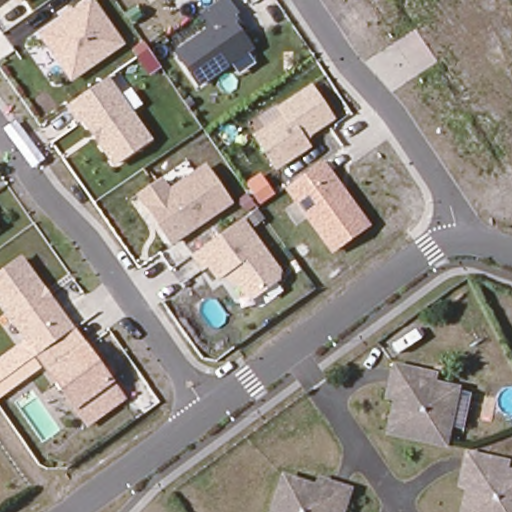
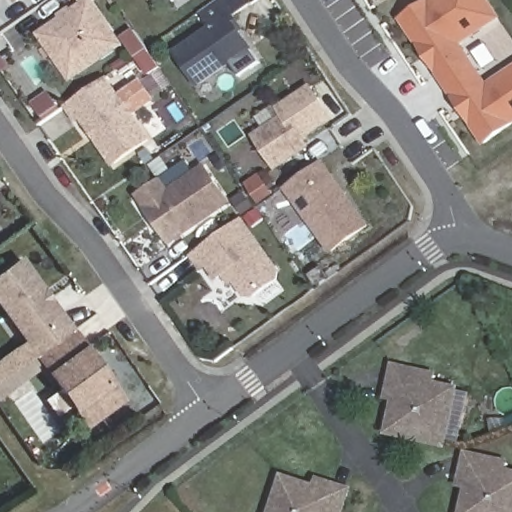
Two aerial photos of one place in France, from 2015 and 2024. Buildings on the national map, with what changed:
unchanged [(16,0),(26,0),(19,5),(16,0)]
unchanged [(37,37),(91,0),(93,0),(126,45),(69,83),(37,37)]
unchanged [(151,0),(156,0),(152,2),(151,0)]
unchanged [(175,51),(210,28),(201,14),(222,0),(229,0),(244,21),(238,26),(255,51),(202,88),(175,51)]
new [(484,0),(495,16),(456,42),(485,85),(512,67),(512,120),(482,141),(400,17),(426,0),(484,0)]
unchanged [(115,167),(85,122),(78,127),(65,107),(109,77),(154,142),(115,167)]
unchanged [(335,121),(307,142),(313,149),(278,172),(252,137),(282,118),(276,107),(311,85),(335,121)]
unchanged [(332,254),(286,187),(325,162),(372,227),(332,254)]
unchanged [(172,247),(136,195),(163,177),(171,189),(208,165),(235,204),(172,247)]
unchanged [(281,271),(280,283),(255,300),(244,298),(226,277),(218,283),(207,268),(202,271),(191,257),(245,220),(281,271)]
unchanged [(89,428),(78,413),(46,370),(36,355),(0,305),(0,273),(23,257),(85,342),(115,381),(127,400),(89,428)]
unchanged [(436,378),(434,387),(457,392),(444,447),(388,433),(396,402),(388,400),(391,387),(395,368),(436,378)]
unchanged [(510,472),(512,472),(512,512),(465,512),(471,487),(463,485),(466,472),(471,453),(512,463),(510,472)]
unchanged [(343,512),(274,512),(285,480),(316,490),(319,482),(331,487),(349,492),(343,512)]

